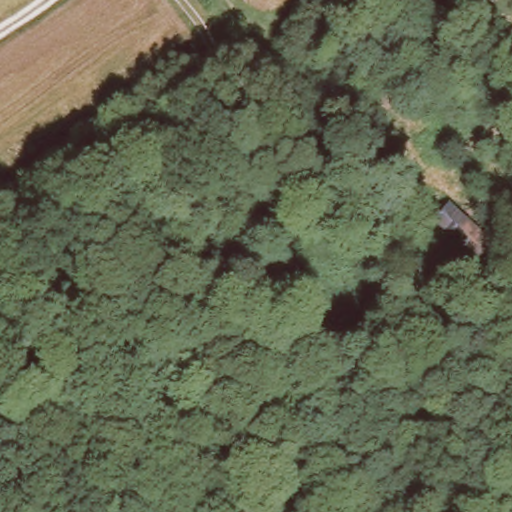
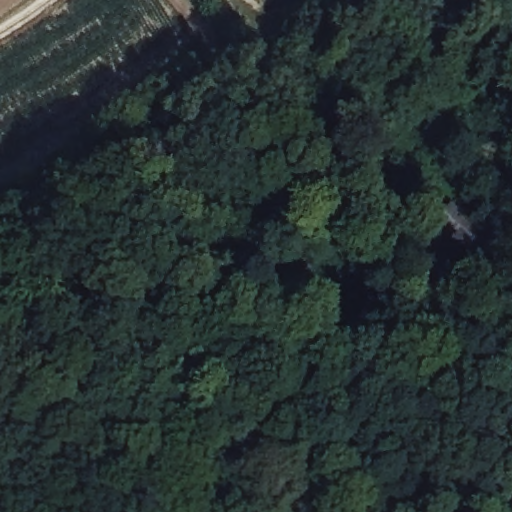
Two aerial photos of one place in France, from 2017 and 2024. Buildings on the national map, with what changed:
unchanged [(477,265),(427,222),(447,204),(493,245),(477,265)]

